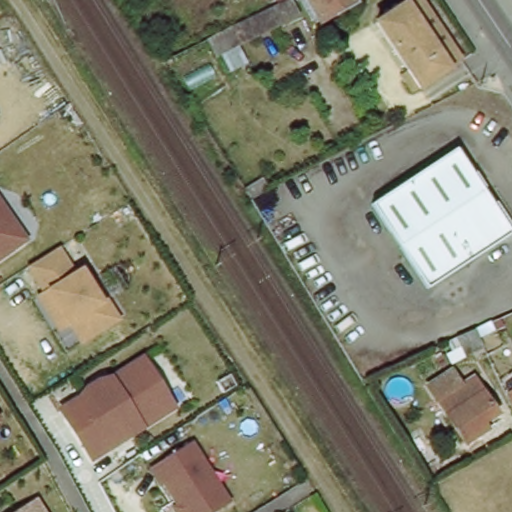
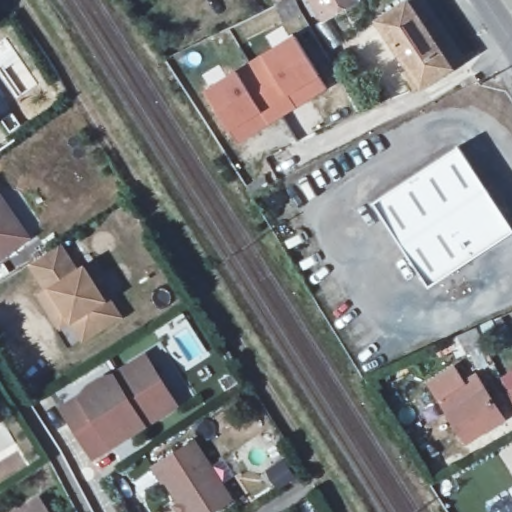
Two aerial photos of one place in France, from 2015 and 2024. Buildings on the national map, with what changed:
demolished [(242,46),(250,65),(231,75),(223,60),(216,64),(207,40),(286,0),(294,0),(303,17),(242,46)]
unchanged [(316,0),(363,0),(329,19),(316,0)]
unchanged [(410,95),(399,77),(406,73),(375,23),(412,0),(419,0),(460,65),(410,95)]
new [(229,64),(231,67),(259,51),(256,49),(288,29),(324,87),(232,140),(197,81),(229,64)]
unchanged [(383,190),(474,145),(512,222),(512,238),(427,280),(383,190)]
unchanged [(0,257),(0,205),(25,240),(0,257)]
unchanged [(101,303),(105,300),(117,320),(80,343),(62,313),(51,320),(37,298),(44,294),(28,268),(27,267),(55,250),(57,249),(74,275),(81,271),(101,303)]
unchanged [(470,350),(462,331),(480,323),(487,342),(470,350)]
unchanged [(65,415),(60,406),(77,395),(86,385),(97,378),(110,375),(142,355),(148,364),(173,404),(128,433),(110,444),(91,456),(65,415)]
unchanged [(455,372),(464,387),(477,380),(502,423),(465,445),(430,386),(455,372)]
unchanged [(507,381),(512,379),(512,394),(507,381)]
unchanged [(173,506),(178,503),(163,480),(160,481),(150,466),(192,440),(229,500),(209,512),(183,512),(183,511),(182,512),(177,512),(173,506)]
unchanged [(35,502),(41,512),(19,512),(35,502)]

